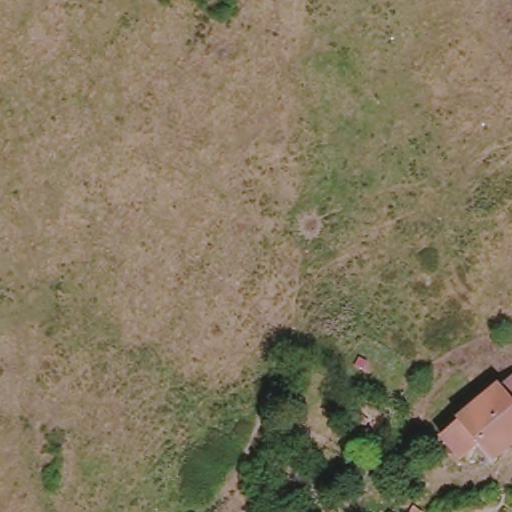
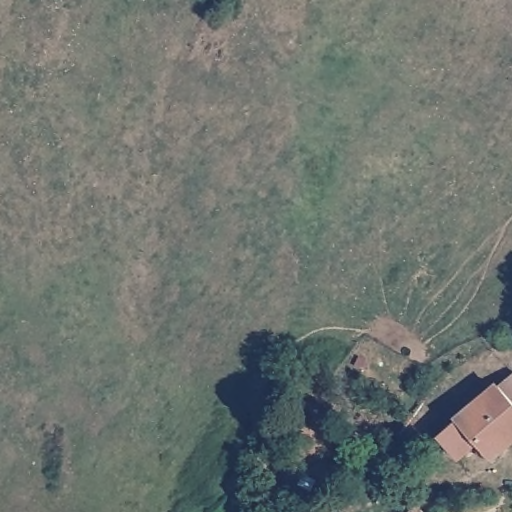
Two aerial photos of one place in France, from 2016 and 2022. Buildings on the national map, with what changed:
unchanged [(460,457),(440,435),(512,374),(512,437),(492,454),(480,441),(460,457)]

